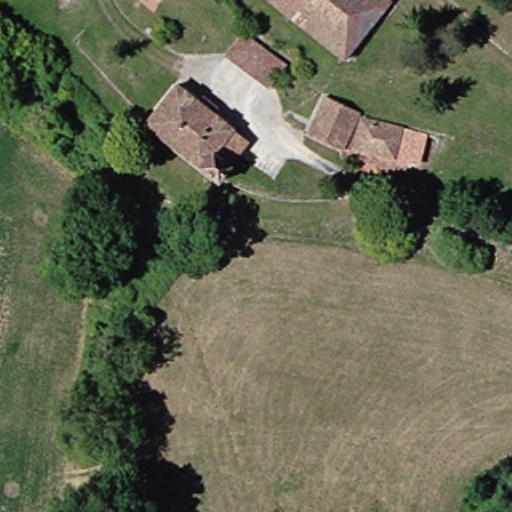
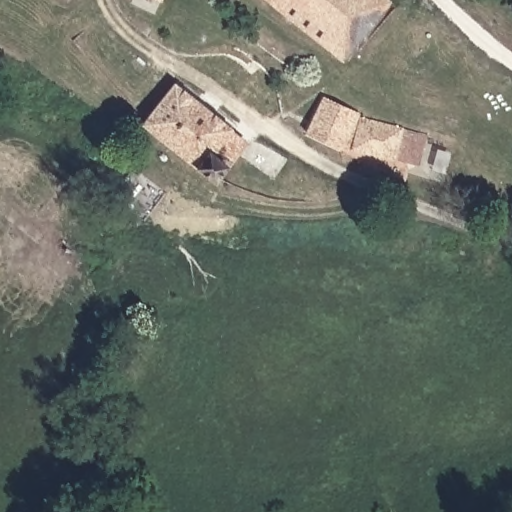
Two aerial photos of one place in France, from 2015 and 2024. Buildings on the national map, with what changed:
unchanged [(167,0),(171,0),(170,2),(167,0)]
unchanged [(278,0),(401,0),(402,1),(366,45),(353,61),(334,45),(278,0)]
unchanged [(298,64),(283,87),(237,58),(253,35),(298,64)]
unchanged [(246,157),(228,182),(153,122),(184,82),(240,129),(256,142),(246,157)]
unchanged [(374,114),(361,152),(331,132),(348,98),(374,114)]
unchanged [(422,129),(411,159),(374,152),(383,123),(422,129)]

